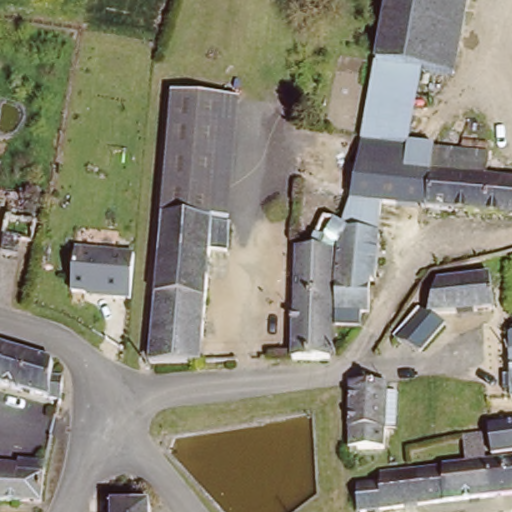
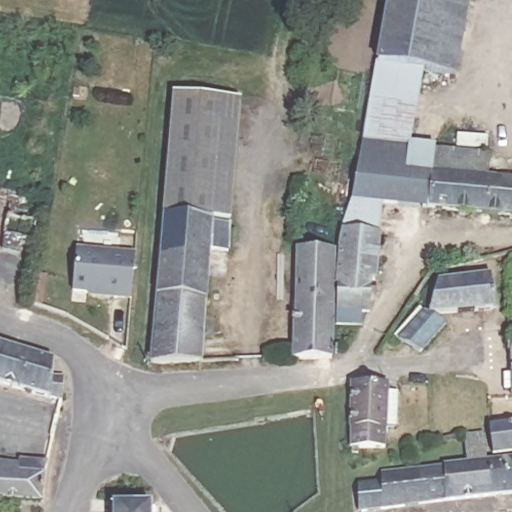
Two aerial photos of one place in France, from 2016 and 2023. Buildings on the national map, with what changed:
unchanged [(442,68),(427,66),(380,59),(388,0),(453,0),(442,68)]
unchanged [(462,72),(442,68),(453,0),(474,0),(462,72)]
unchanged [(289,355),(293,258),(298,230),(310,232),(321,243),(327,214),(340,215),(357,149),(360,139),(380,59),(427,66),(425,71),(413,141),(492,148),(491,171),(512,175),(512,221),(395,201),(389,232),(392,232),(382,280),(376,278),(370,312),(361,311),(360,322),(337,321),(332,320),(330,354),(289,355)]
unchanged [(167,159),(172,121),(175,107),(238,113),(227,232),(161,226),(167,159)]
unchanged [(32,244),(17,241),(13,256),(0,252),(0,227),(2,228),(5,213),(37,221),(32,244)]
unchanged [(227,232),(225,259),(212,258),(202,352),(150,348),(161,226),(227,232)]
unchanged [(135,254),(131,301),(71,295),(75,249),(135,254)]
unchanged [(493,312),(445,317),(445,325),(420,353),(396,343),(423,308),(430,314),(435,279),(488,275),(493,312)]
unchanged [(202,352),(200,371),(148,371),(150,348),(202,352)]
unchanged [(45,377),(55,380),(53,403),(0,389),(0,349),(48,364),(45,377)]
unchanged [(503,367),(512,367),(512,350),(512,393),(512,386),(503,385),(503,367)]
unchanged [(350,384),(386,382),(386,393),(398,393),(398,428),(387,428),(387,449),(350,451),(350,384)]
unchanged [(512,429),(512,455),(488,460),(485,433),(512,429)]
unchanged [(462,467),(458,442),(478,439),(482,464),(489,463),(512,460),(512,494),(392,512),(354,512),(352,490),(375,487),(375,480),(462,467)]
unchanged [(42,466),(42,476),(39,501),(0,499),(0,474),(12,474),(12,464),(42,466)]
unchanged [(155,503),(155,512),(117,512),(117,501),(155,503)]

